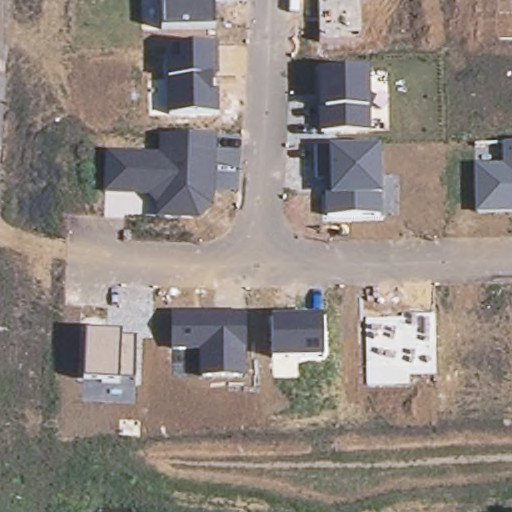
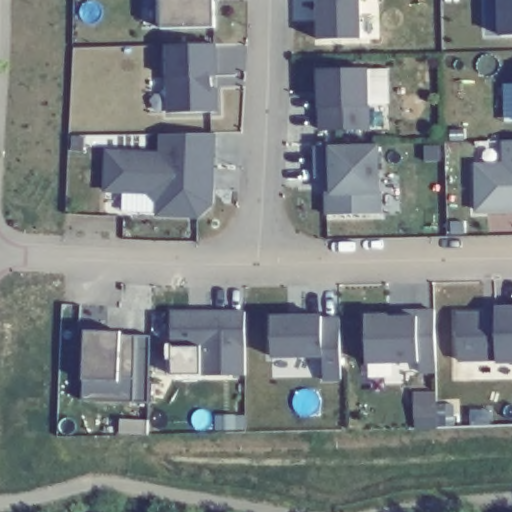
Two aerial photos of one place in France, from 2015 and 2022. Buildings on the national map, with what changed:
unchanged [(220,0),(220,1),(215,1),(215,26),(164,28),(163,0),(220,0)]
unchanged [(361,0),(362,36),(321,39),(320,0),(361,0)]
new [(512,0),(512,38),(500,38),(499,0),(512,0)]
unchanged [(169,44),(218,43),(219,76),(211,76),(211,88),(219,88),(219,111),(167,112),(169,44)]
unchanged [(320,130),(319,109),(319,70),(370,69),(371,105),(371,129),(320,130)]
unchanged [(107,150),(160,151),(160,133),(217,133),(216,204),(200,218),(159,216),(156,203),(147,193),(105,192),(107,150)]
unchanged [(476,163),(504,163),(504,140),(512,140),(512,210),(476,211),(476,163)]
unchanged [(326,180),(316,180),(315,145),(318,145),(330,144),(380,143),(382,193),(382,214),(326,215),(326,180)]
new [(457,312),(497,312),(497,308),(512,307),(512,367),(497,367),(497,362),(457,363),(457,312)]
unchanged [(172,311),(246,311),(245,377),(200,376),(201,349),(172,348),(172,311)]
new [(366,315),(390,314),(390,318),(412,318),(413,312),(437,312),(438,374),(420,375),(419,365),(367,367),(366,315)]
unchanged [(272,317),(324,316),(325,358),(272,359),(272,317)]
unchanged [(87,331),(121,332),(122,336),(137,336),(136,377),(119,377),(119,381),(85,379),(87,331)]

